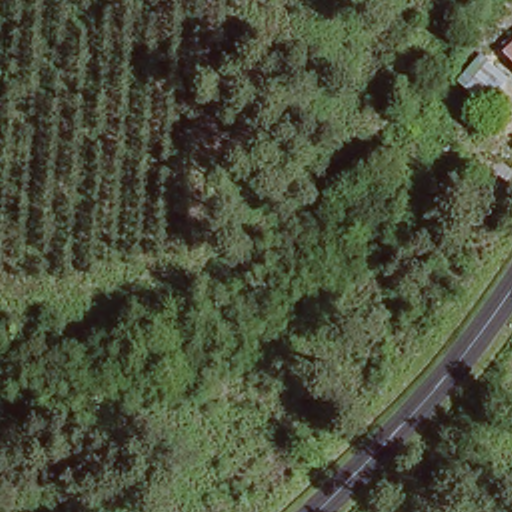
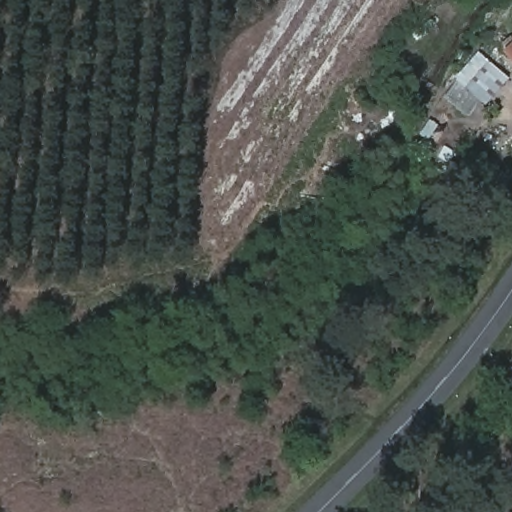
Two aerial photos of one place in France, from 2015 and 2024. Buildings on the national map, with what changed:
unchanged [(512,51),(512,60),(507,56),(512,51)]

